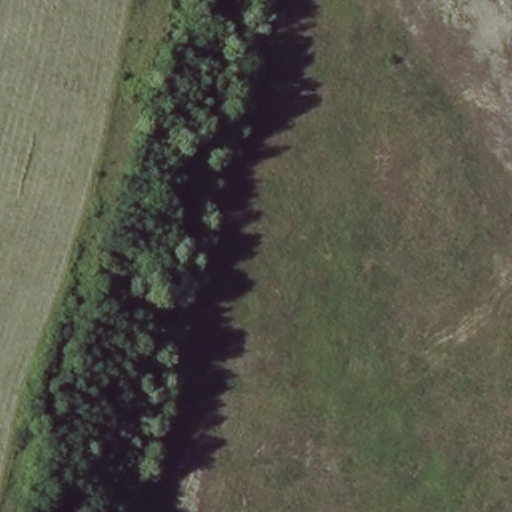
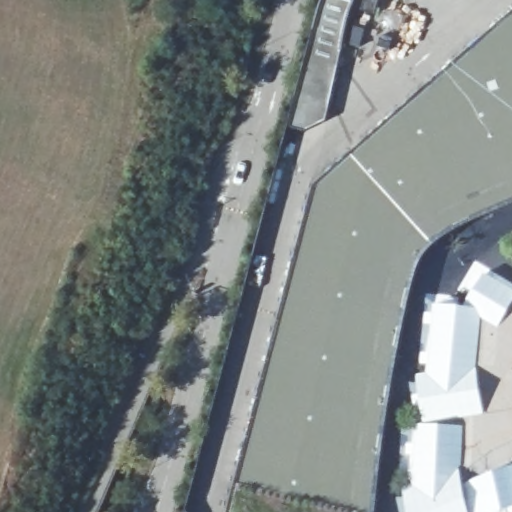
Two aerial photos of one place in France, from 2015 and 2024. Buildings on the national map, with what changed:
new [(462,61),(512,19),(512,204),(447,233),(427,248),(413,267),(405,310),(389,405),(375,512),(233,512),(318,187),(462,61)]
new [(509,512),(410,512),(405,488),(414,483),(415,425),(427,425),(419,376),(428,373),(435,303),(467,305),(485,272),(512,288),(512,511),(509,512)]

